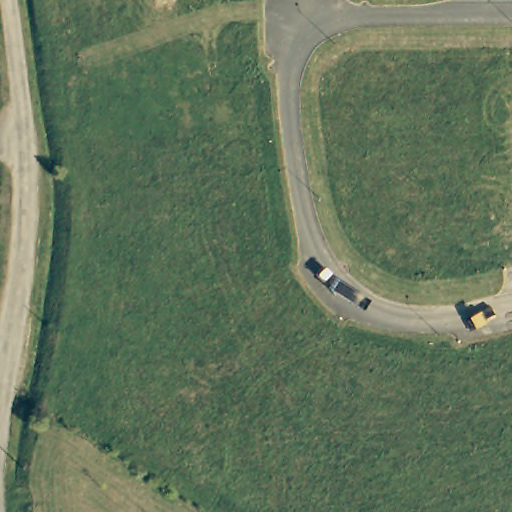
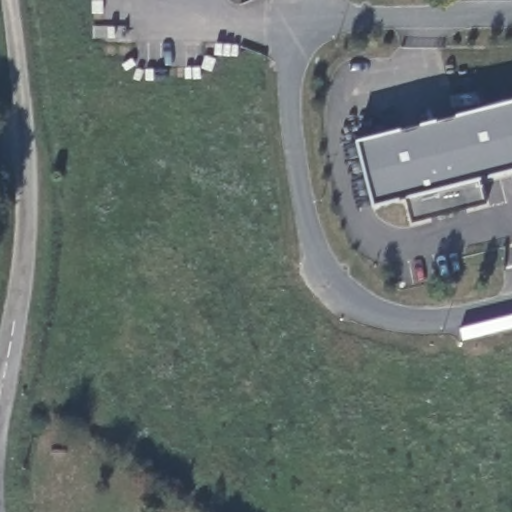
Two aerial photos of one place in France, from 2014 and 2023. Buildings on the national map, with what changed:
new [(487,203),(412,222),(404,198),(372,206),(356,141),(512,102),(512,171),(484,178),(487,203)]

